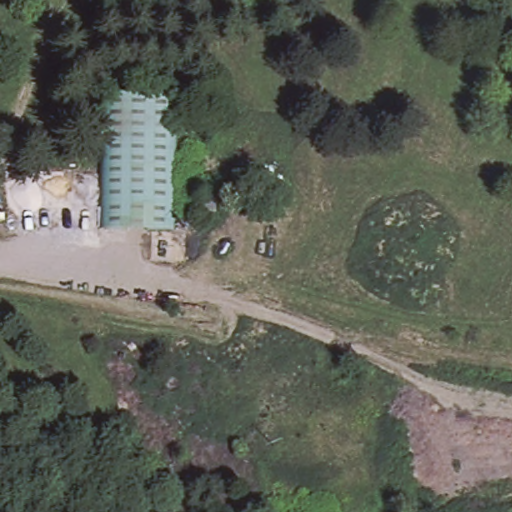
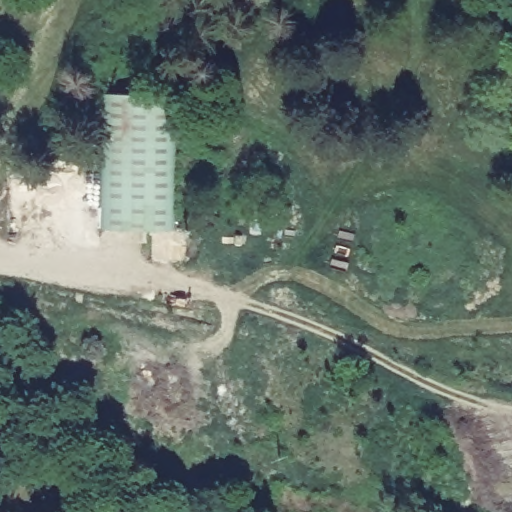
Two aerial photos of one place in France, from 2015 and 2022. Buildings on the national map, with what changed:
unchanged [(103,93),(177,94),(174,230),(98,228),(103,93)]
unchanged [(213,204),(213,216),(204,216),(204,204),(213,204)]

